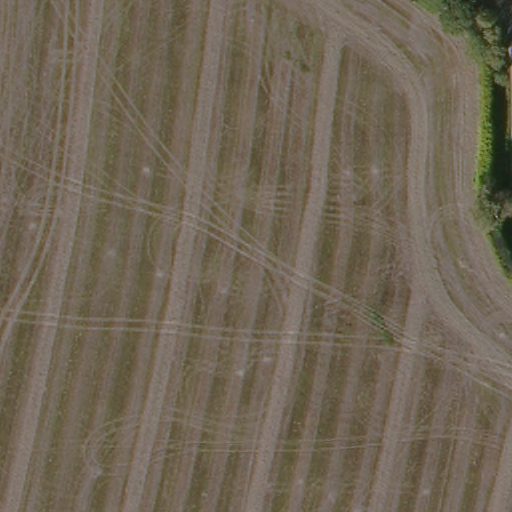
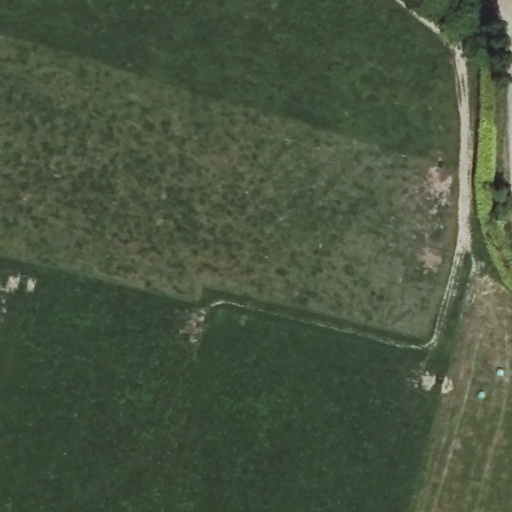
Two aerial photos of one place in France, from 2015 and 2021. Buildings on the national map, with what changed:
[]

